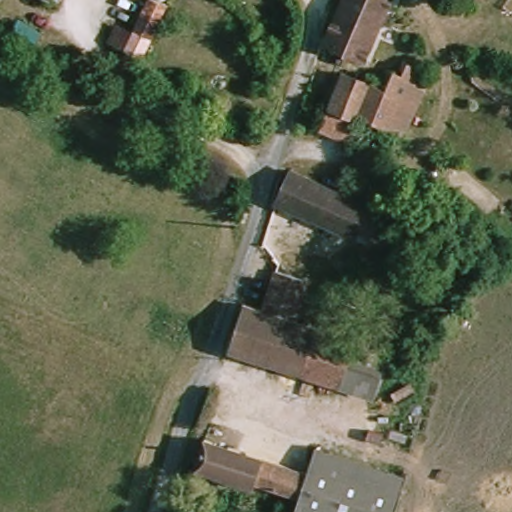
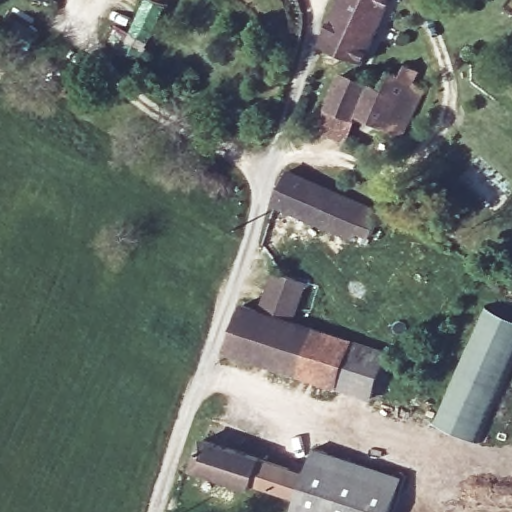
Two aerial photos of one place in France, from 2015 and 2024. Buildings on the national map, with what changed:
unchanged [(116,21),(133,31),(151,0),(169,0),(139,53),(123,47),(106,38),(116,21)]
unchanged [(323,37),(340,0),(387,0),(364,54),(323,37)]
unchanged [(391,76),(403,81),(409,64),(420,69),(416,80),(428,85),(412,132),(360,114),(359,116),(333,107),(345,74),(371,83),(387,89),(391,76)]
unchanged [(356,232),(279,199),(288,166),(384,209),(379,219),(367,216),(356,232)]
unchanged [(278,266),(307,280),(290,318),(261,305),(278,266)]
unchanged [(228,338),(242,297),(261,305),(290,318),(381,360),(362,399),(228,338)]
new [(466,342),(484,303),(512,316),(512,363),(477,440),(433,420),(434,418),(466,342)]
unchanged [(298,494),(256,484),(254,490),(198,472),(207,440),(309,469),(311,457),(379,482),(365,512),(308,512),(295,508),(298,494)]
unchanged [(311,457),(317,441),(386,466),(403,473),(397,489),(379,482),(311,457)]
unchanged [(389,512),(365,512),(379,482),(397,489),(389,512)]
unchanged [(308,512),(294,512),(295,508),(308,512)]

